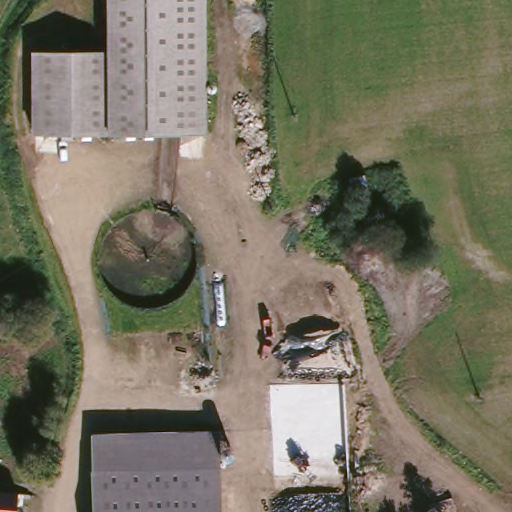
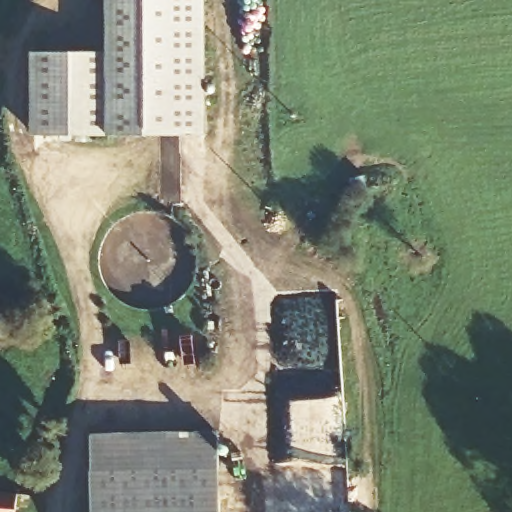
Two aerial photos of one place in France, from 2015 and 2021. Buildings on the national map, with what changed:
unchanged [(30,53),(105,52),(105,0),(201,0),(202,131),(31,134),(30,53)]
unchanged [(90,512),(89,501),(88,434),(215,430),(217,512),(90,512)]
unchanged [(0,512),(0,489),(31,493),(29,512),(0,512)]

